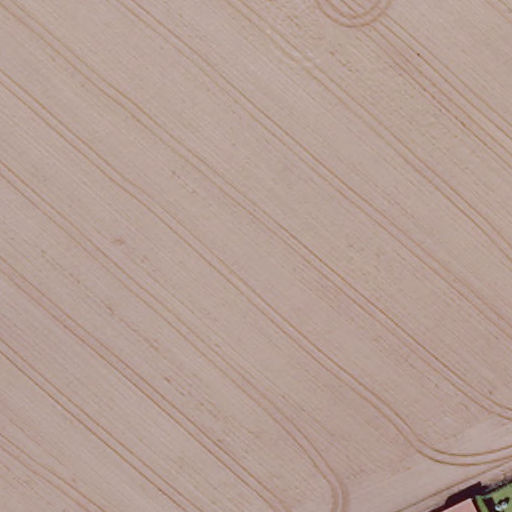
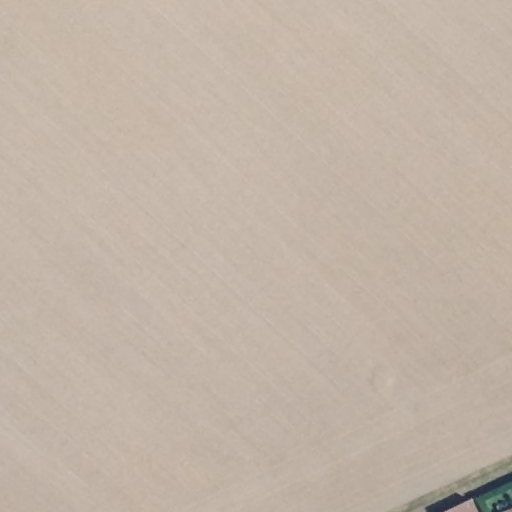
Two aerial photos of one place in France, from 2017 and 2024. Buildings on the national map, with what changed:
unchanged [(472,512),(442,512),(467,500),(472,512)]

